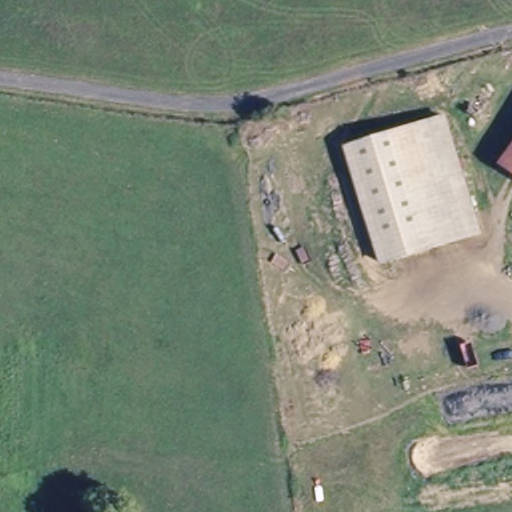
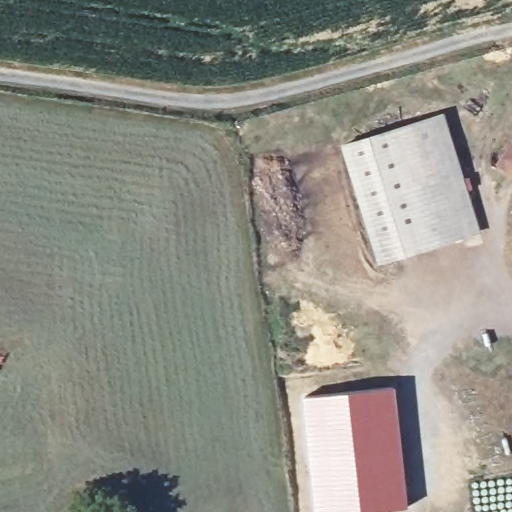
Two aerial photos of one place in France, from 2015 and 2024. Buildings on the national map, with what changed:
unchanged [(396,128),(436,112),(479,225),(436,241),(396,128)]
unchanged [(512,123),(512,171),(491,157),(512,123)]
unchanged [(385,259),(344,146),(396,128),(436,241),(385,259)]
new [(409,506),(359,512),(318,512),(304,396),(395,385),(409,506)]

